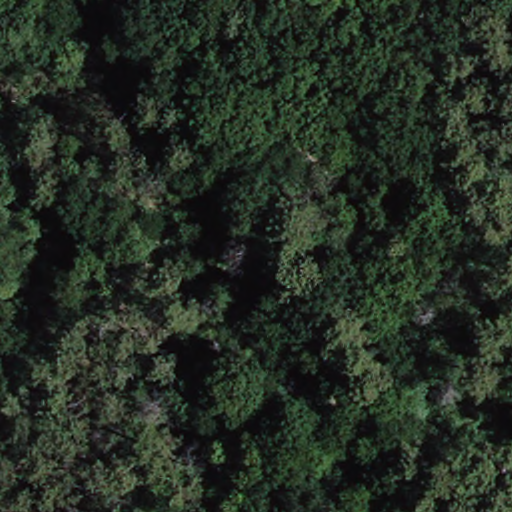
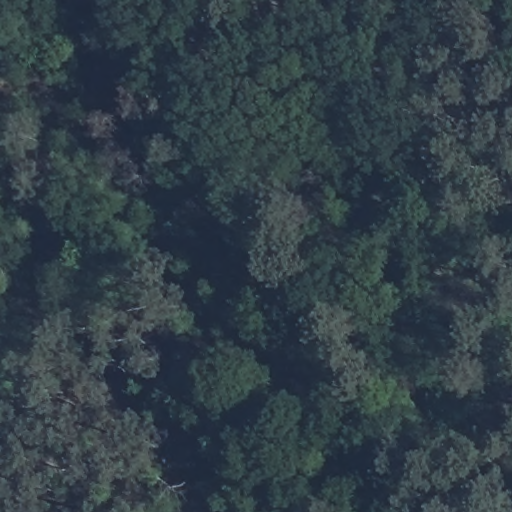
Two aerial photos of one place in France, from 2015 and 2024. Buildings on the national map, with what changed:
[]

